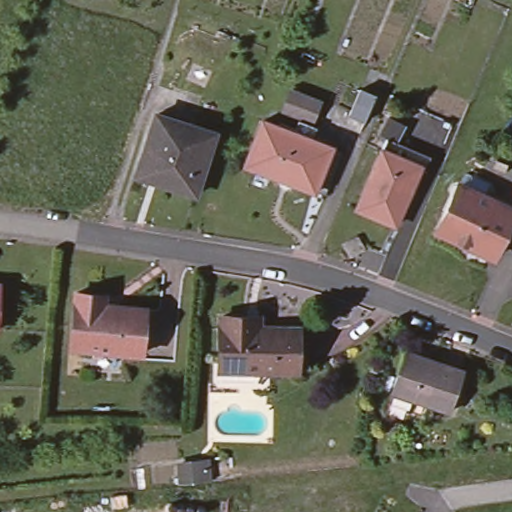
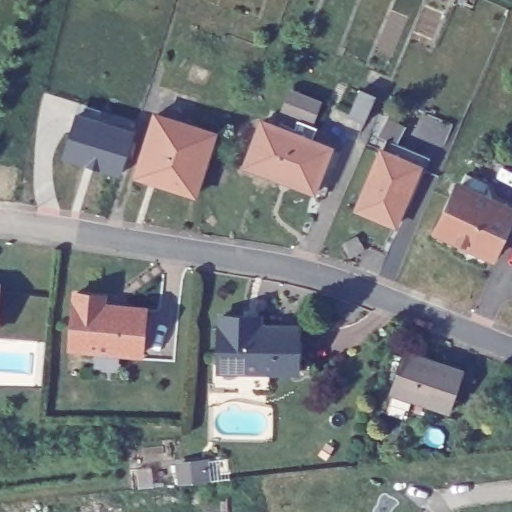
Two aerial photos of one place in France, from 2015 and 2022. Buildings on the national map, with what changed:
unchanged [(375,95),(365,121),(348,114),(360,88),(375,95)]
new [(76,113),(78,105),(102,111),(100,119),(135,130),(121,177),(62,157),(76,113)]
unchanged [(217,130),(198,192),(138,174),(158,113),(217,130)]
unchanged [(315,192),(305,188),(304,190),(237,162),(255,118),(323,145),(333,149),(315,192)]
unchanged [(418,165),(393,225),(355,208),(381,149),(418,165)]
unchanged [(438,231),(460,185),(494,201),(512,209),(512,225),(502,247),(493,264),(491,263),(468,252),(471,246),(438,231)]
unchanged [(100,295),(99,305),(142,310),(137,355),(67,347),(73,292),(100,295)]
unchanged [(297,372),(257,370),(220,369),(221,315),(247,316),(258,317),(258,325),(297,327),(297,372)]
unchanged [(447,412),(390,392),(391,390),(402,355),(429,364),(430,360),(461,371),(454,391),(447,412)]
unchanged [(204,461),(210,461),(212,480),(207,481),(182,483),(180,463),(204,461)]

